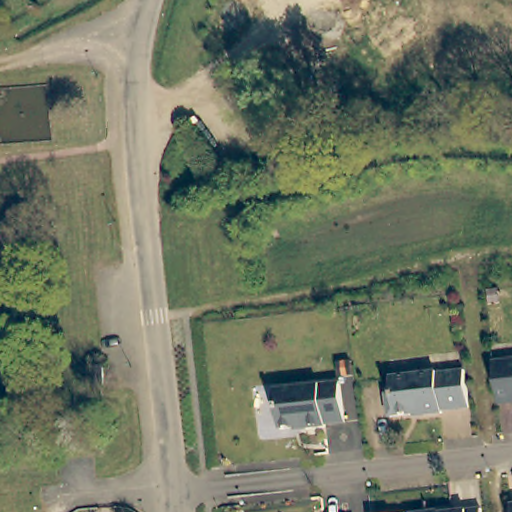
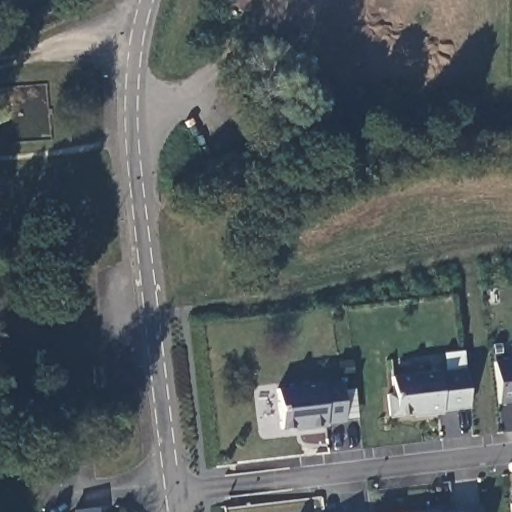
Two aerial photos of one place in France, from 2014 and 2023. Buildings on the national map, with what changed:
unchanged [(498,365),(512,363),(512,406),(503,407),(498,365)]
unchanged [(468,405),(440,408),(441,411),(422,413),(421,410),(388,413),(386,394),(393,393),(391,375),(437,370),(437,372),(464,369),(468,405)]
unchanged [(347,424),(328,426),(328,429),(309,431),(309,429),(283,431),(278,393),(343,386),(347,424)]
unchanged [(512,502),(512,512),(511,512),(510,503),(512,502)]

